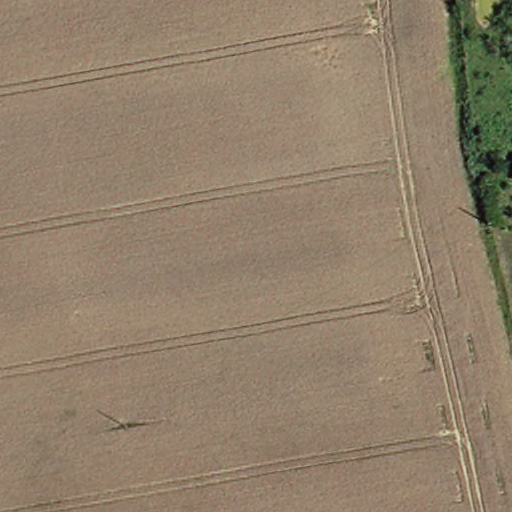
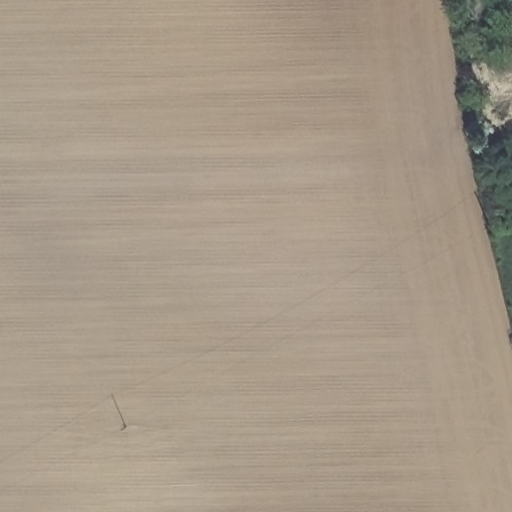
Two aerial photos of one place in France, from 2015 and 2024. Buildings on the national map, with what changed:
[]

